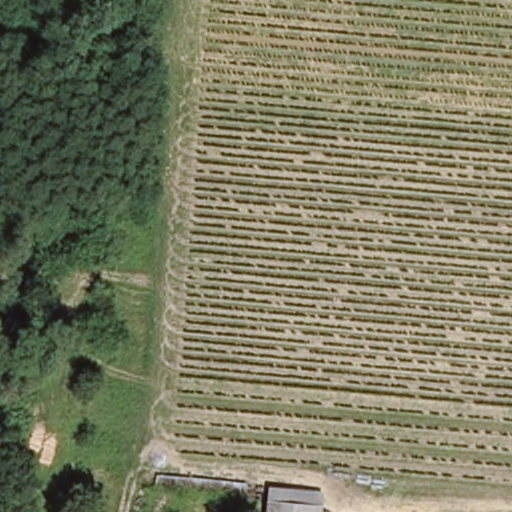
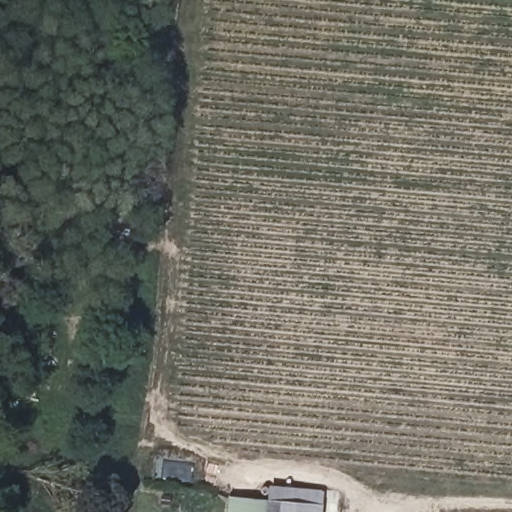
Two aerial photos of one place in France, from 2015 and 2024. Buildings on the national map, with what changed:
new [(228,512),(230,496),(270,499),(268,512),(228,512)]
unchanged [(321,502),(321,512),(268,512),(270,499),(321,502)]

